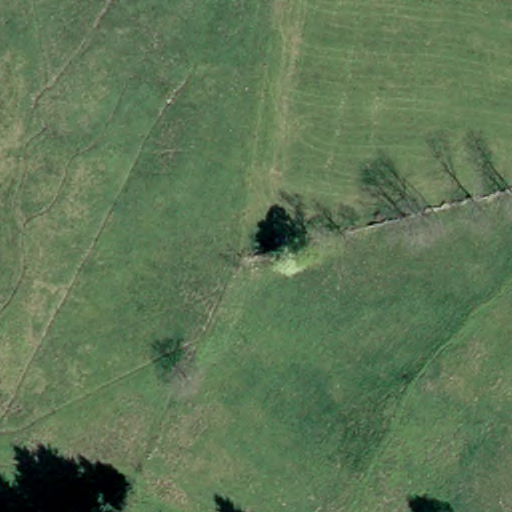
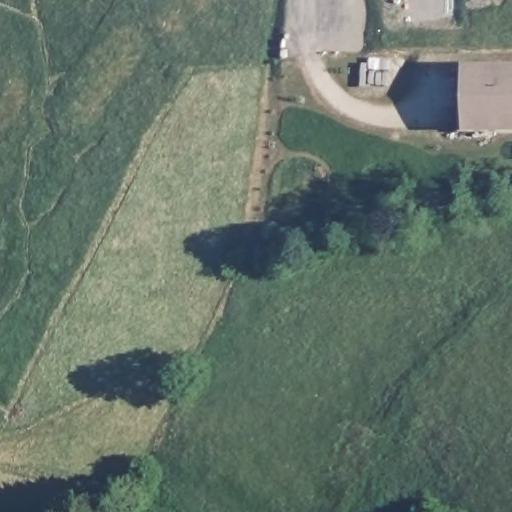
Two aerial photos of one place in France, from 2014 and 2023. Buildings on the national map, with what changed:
new [(463,131),(462,64),(512,63),(512,130),(463,131)]

